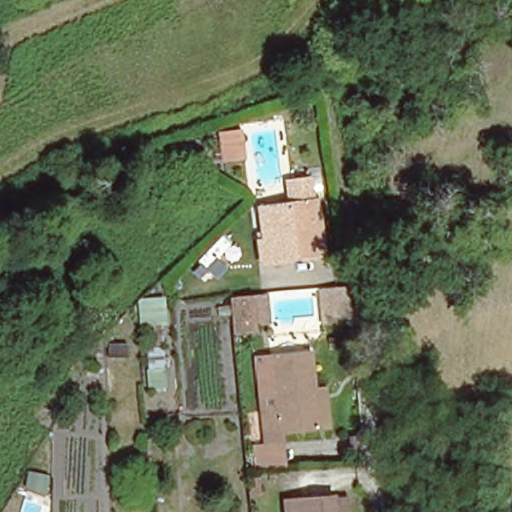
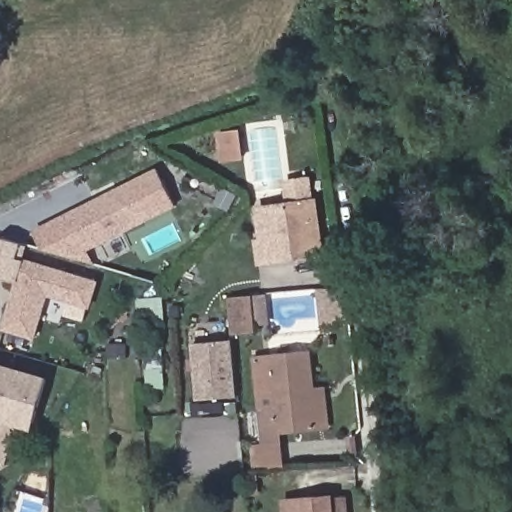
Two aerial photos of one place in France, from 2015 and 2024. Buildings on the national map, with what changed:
unchanged [(236,135),(240,162),(223,165),(220,137),(236,135)]
new [(89,251),(92,258),(80,265),(75,257),(43,250),(34,230),(157,169),(177,207),(89,251)]
unchanged [(293,263),(262,267),(259,245),(264,244),(260,215),(286,210),(291,210),(288,187),(296,186),(310,184),(313,207),(317,206),(324,259),(293,263)]
new [(0,275),(0,240),(3,238),(21,242),(17,257),(26,259),(99,280),(90,308),(50,296),(36,340),(1,329),(17,280),(0,275)]
unchanged [(348,288),(351,320),(325,320),(323,290),(348,288)]
unchanged [(254,296),(266,295),(269,325),(256,325),(257,333),(231,335),(227,298),(254,296)]
unchanged [(165,298),(169,388),(149,390),(146,327),(139,328),(137,300),(165,298)]
new [(232,340),(237,397),(198,400),(192,344),(232,340)]
unchanged [(258,470),(255,445),(265,444),(264,435),(256,358),(311,352),(315,387),(327,386),(330,427),(319,428),(281,432),(285,467),(258,470)]
new [(35,430),(20,427),(5,465),(0,464),(0,362),(50,377),(35,430)]
unchanged [(284,501),(333,497),(350,495),(351,512),(285,512),(284,501)]

